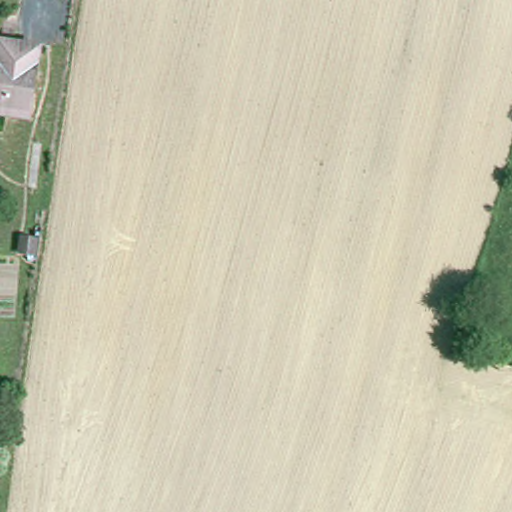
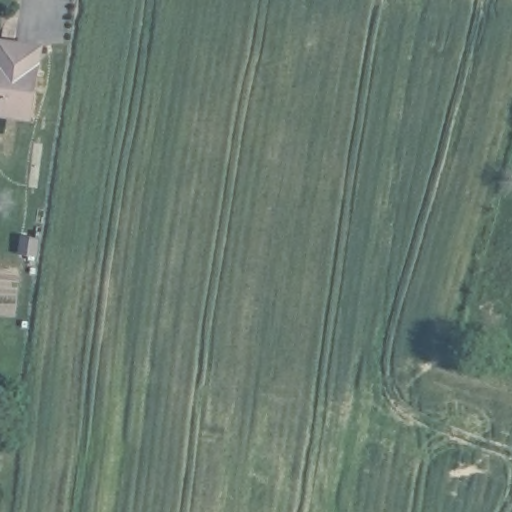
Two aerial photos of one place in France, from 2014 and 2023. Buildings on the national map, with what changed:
unchanged [(3,62),(5,44),(44,49),(33,118),(0,112),(0,61),(3,62)]

